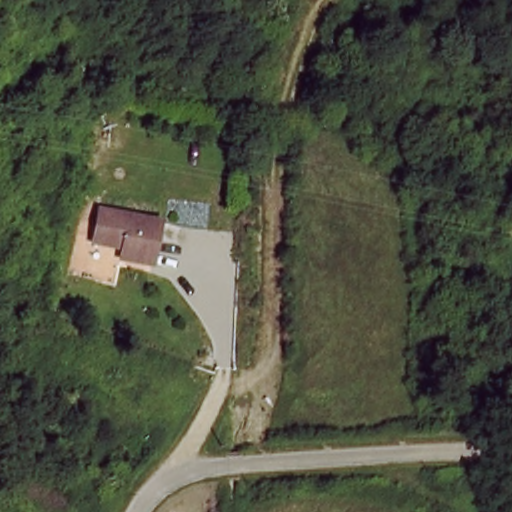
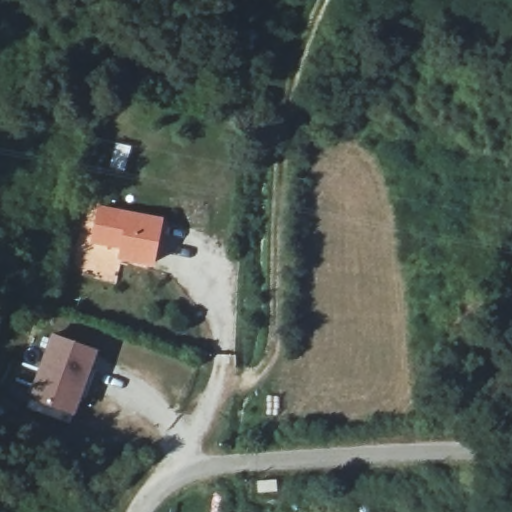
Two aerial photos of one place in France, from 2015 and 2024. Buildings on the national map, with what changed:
unchanged [(98,229),(105,209),(163,229),(158,245),(98,229)]
unchanged [(151,272),(121,262),(125,250),(96,239),(98,229),(158,245),(151,272)]
new [(30,396),(55,333),(102,349),(76,417),(71,414),(68,424),(25,409),(30,396)]

